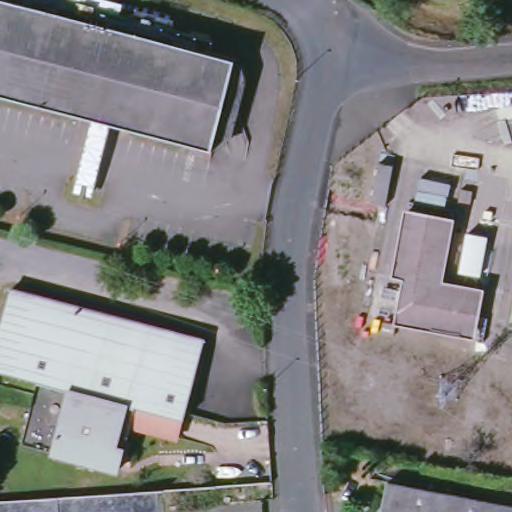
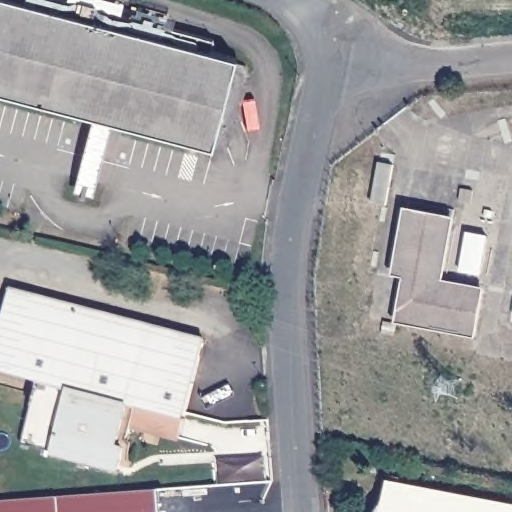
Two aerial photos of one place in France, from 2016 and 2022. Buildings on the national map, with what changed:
unchanged [(212,144),(121,120),(112,118),(92,113),(0,89),(0,0),(77,0),(117,10),(213,35),(210,47),(236,54),(235,58),(239,59),(243,76),(238,94),(228,133),(213,142),(212,144)]
unchanged [(112,118),(92,191),(73,185),(92,113),(112,118)]
unchanged [(385,206),(371,203),(380,162),(394,165),(385,206)]
unchanged [(446,282),(487,290),(478,336),(403,321),(412,276),(400,274),(413,211),(458,220),(446,282)]
unchanged [(185,412),(184,419),(182,418),(177,439),(131,426),(120,470),(23,444),(39,381),(0,371),(0,335),(11,292),(204,343),(185,412)]
unchanged [(383,505),(388,481),(512,506),(512,512),(382,512),(383,505)]

